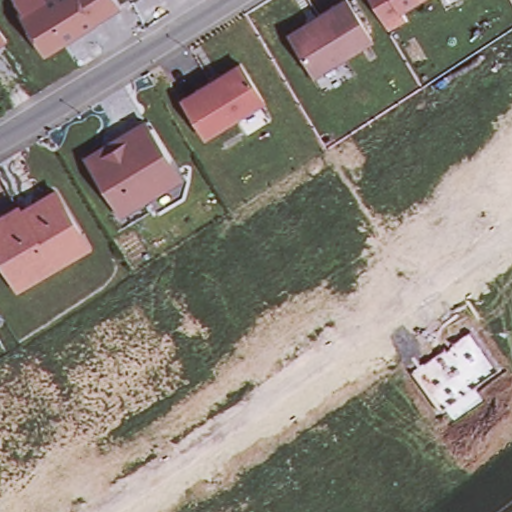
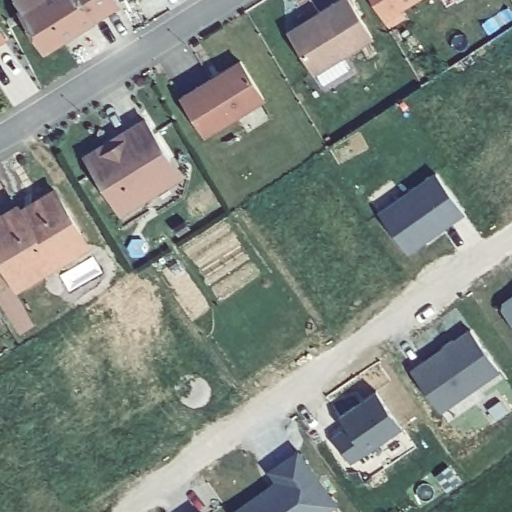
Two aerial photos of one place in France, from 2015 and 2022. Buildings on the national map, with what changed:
unchanged [(121,6),(44,55),(13,0),(116,0),(121,6)]
unchanged [(371,38),(313,72),(291,36),(294,27),(305,21),(319,13),(341,0),(350,0),(371,38)]
unchanged [(389,24),(382,14),(379,7),(374,0),(406,0),(400,3),(406,14),(389,24)]
unchanged [(0,47),(0,32),(7,41),(0,47)]
unchanged [(240,60),(263,98),(204,135),(181,97),(240,60)]
unchanged [(145,119),(169,159),(153,168),(163,185),(118,211),(85,155),(145,119)]
new [(378,212),(437,173),(465,214),(407,254),(378,212)]
unchanged [(20,209),(54,188),(87,244),(17,286),(0,257),(0,216),(17,205),(20,209)]
new [(499,306),(512,297),(512,325),(499,306)]
new [(410,370),(471,328),(501,371),(441,413),(410,370)]
new [(333,435),(347,426),(338,414),(377,388),(402,427),(367,452),(350,462),(333,435)]
new [(271,469),(299,449),(337,503),(324,512),(235,512),(279,481),(271,469)]

